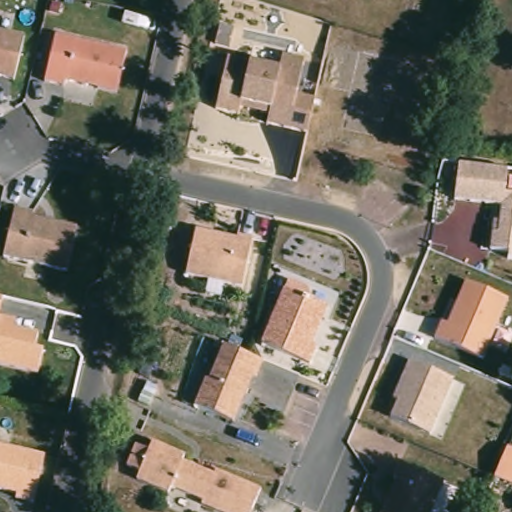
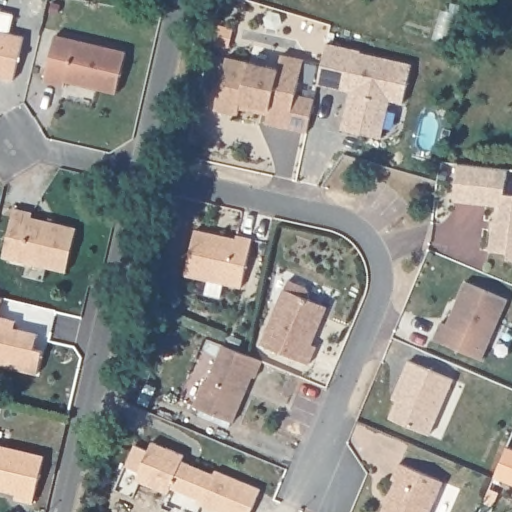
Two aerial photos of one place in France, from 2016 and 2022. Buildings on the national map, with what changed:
unchanged [(0,76),(0,30),(23,35),(13,79),(0,76)]
unchanged [(126,49),(117,91),(66,80),(65,85),(45,80),(54,33),(126,49)]
new [(317,90),(326,49),(360,57),(360,58),(411,70),(402,109),(389,106),(380,144),(341,135),(346,112),(350,97),(317,90)]
unchanged [(279,67),(282,54),(304,58),(298,94),(317,97),(311,131),(270,122),(272,113),(242,107),(242,114),(218,109),(227,57),(249,61),(279,67)]
unchanged [(506,260),(507,252),(489,251),(494,218),(498,219),(500,206),(455,201),(460,162),(512,168),(512,260),(506,260)]
unchanged [(13,207),(31,212),(30,217),(75,227),(65,271),(1,256),(13,207)]
unchanged [(231,231),(220,280),(164,267),(174,222),(194,226),(215,231),(216,227),(231,231)]
unchanged [(305,300),(329,308),(313,345),(318,346),(310,363),(261,343),(288,278),(310,287),(305,300)]
unchanged [(435,337),(442,321),(448,323),(466,280),(509,297),(485,358),(442,338),(435,337)]
unchanged [(12,320),(10,328),(34,333),(30,348),(39,351),(33,373),(0,365),(0,317),(5,318),(12,320)]
unchanged [(260,357),(266,360),(259,379),(253,377),(237,420),(201,406),(194,404),(205,376),(211,378),(225,343),(260,357)]
unchanged [(455,378),(433,433),(394,416),(399,401),(393,398),(409,360),(415,362),(455,378)]
unchanged [(129,432),(161,446),(160,452),(192,466),(194,462),(240,481),(227,512),(217,512),(181,497),(182,492),(150,479),(148,486),(113,471),(116,462),(103,457),(111,435),(126,441),(129,432)]
unchanged [(15,500),(16,495),(0,491),(0,446),(44,456),(33,503),(15,500)]
unchanged [(512,450),(512,485),(488,476),(500,446),(512,450)]
unchanged [(408,512),(360,512),(365,501),(367,502),(378,476),(373,474),(379,458),(423,477),(408,512)]

